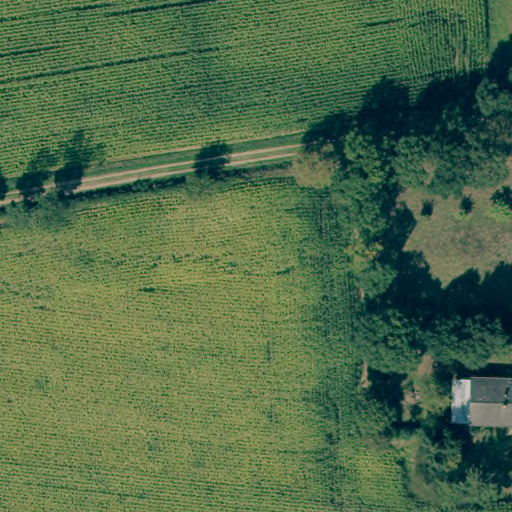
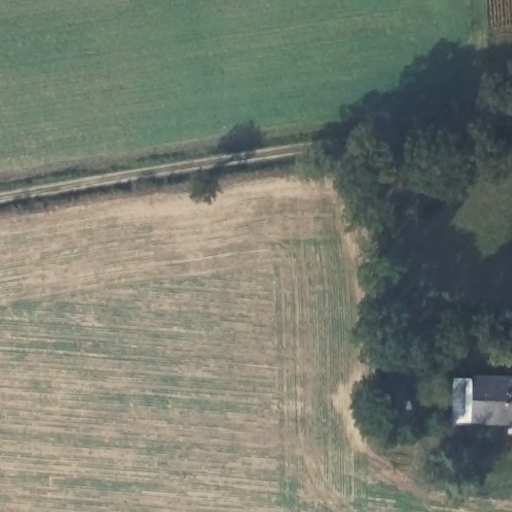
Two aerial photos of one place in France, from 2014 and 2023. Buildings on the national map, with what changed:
unchanged [(471,382),(512,384),(512,426),(469,423),(471,382)]

